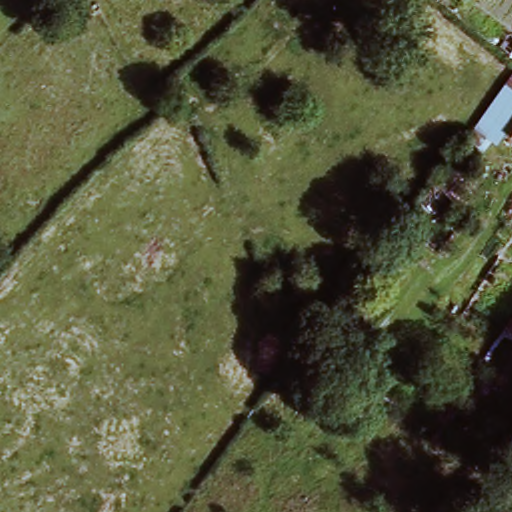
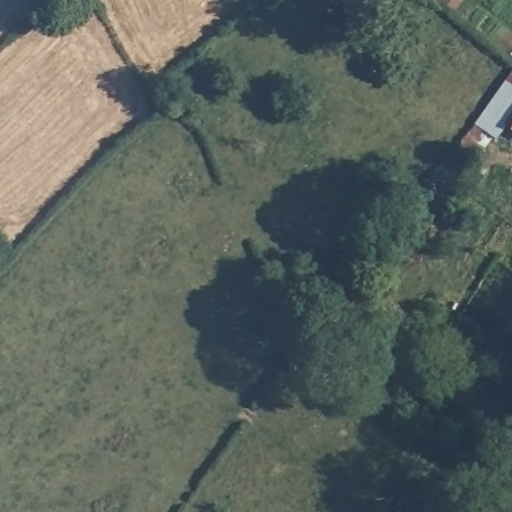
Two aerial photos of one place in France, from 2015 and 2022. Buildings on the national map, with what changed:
unchanged [(512,130),(505,125),(496,142),(471,126),(512,70),(512,130)]

